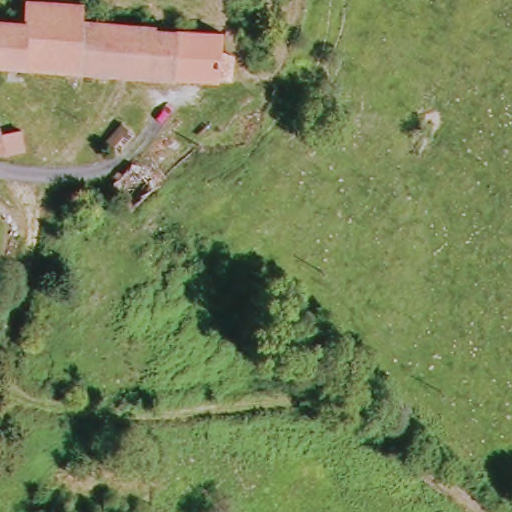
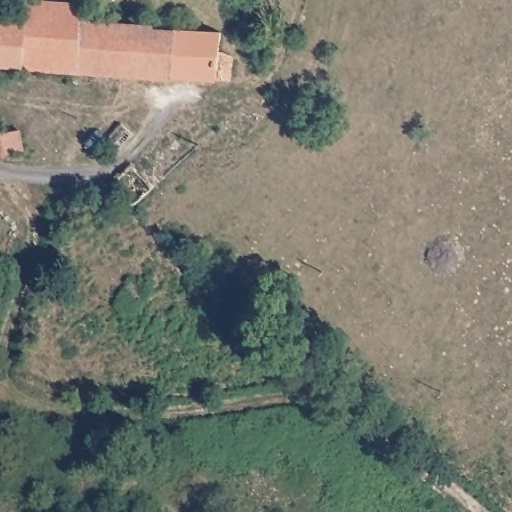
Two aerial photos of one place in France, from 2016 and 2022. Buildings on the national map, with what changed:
unchanged [(27,3),(85,6),(83,23),(80,72),(0,68),(0,24),(25,25),(27,3)]
unchanged [(237,82),(80,72),(83,23),(227,34),(227,48),(240,58),(237,82)]
unchanged [(3,124),(15,123),(17,143),(0,146),(0,118),(3,118),(3,124)]
unchanged [(138,132),(122,150),(107,136),(123,121),(138,132)]
unchanged [(152,191),(133,207),(115,186),(131,170),(152,191)]

